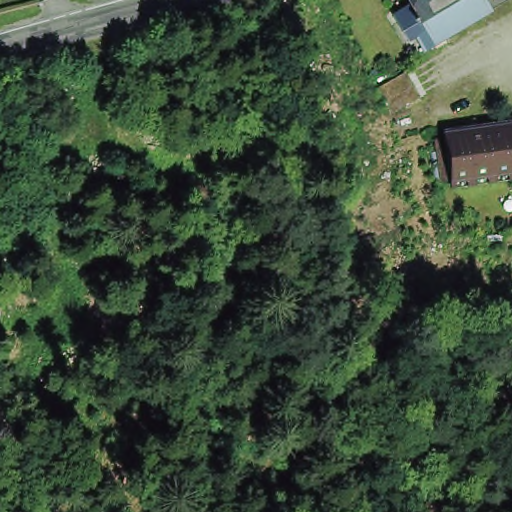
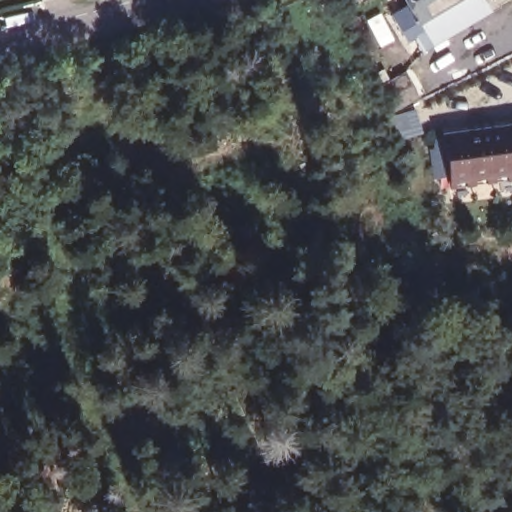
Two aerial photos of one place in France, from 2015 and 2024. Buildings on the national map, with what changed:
unchanged [(401,38),(390,11),(407,4),(405,0),(481,0),(481,1),(488,14),(415,50),(408,35),(401,38)]
unchanged [(390,121),(374,95),(400,79),(417,105),(390,121)]
unchanged [(512,126),(512,173),(449,182),(442,136),(512,126)]

